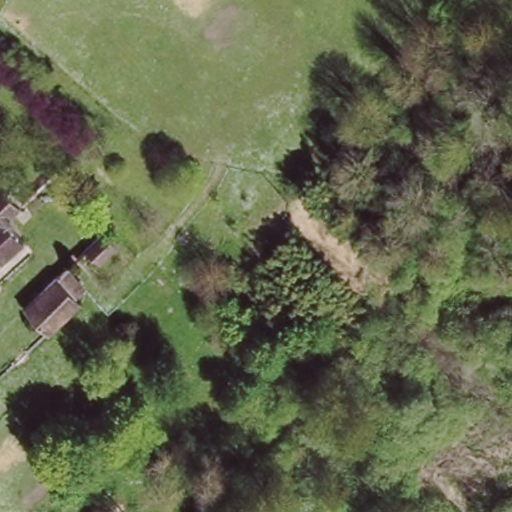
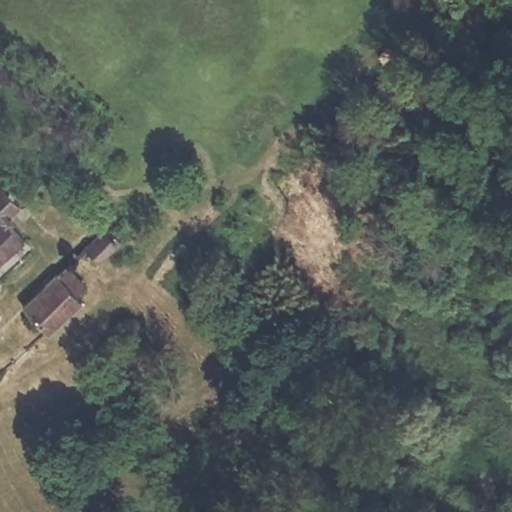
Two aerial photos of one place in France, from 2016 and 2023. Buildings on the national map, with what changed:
unchanged [(32,238),(0,269),(0,188),(8,180),(13,185),(19,181),(32,195),(10,216),(32,238)]
unchanged [(127,240),(115,251),(105,262),(92,249),(113,227),(127,240)]
unchanged [(81,289),(85,292),(78,299),(82,305),(53,333),(30,308),(66,273),(81,289)]
unchanged [(0,382),(1,383),(0,384),(0,382)]

